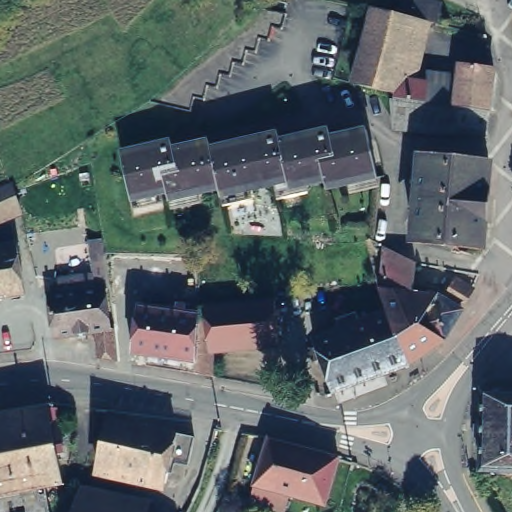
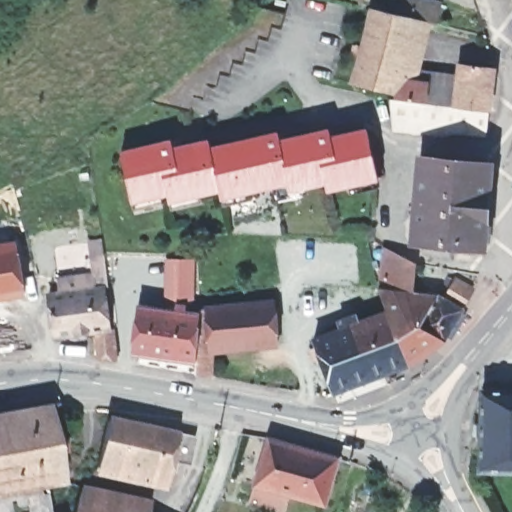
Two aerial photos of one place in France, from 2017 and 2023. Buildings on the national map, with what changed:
unchanged [(286,19),(277,16),(272,30),(262,29),(259,41),(251,41),(246,55),(237,53),(232,67),(225,66),(220,80),(213,77),(207,92),(199,90),(193,106),(155,96),(165,88),(168,86),(232,34),(259,0),(284,0),(290,2),(286,19)]
unchanged [(370,3),(397,10),(399,0),(434,0),(435,1),(431,20),(410,14),(395,74),(390,90),(349,79),(370,3)]
unchanged [(486,104),(390,94),(390,90),(395,74),(426,77),(427,81),(454,84),(457,59),(488,61),(490,71),(486,104)]
unchanged [(485,128),(460,126),(440,131),(437,126),(425,130),(422,125),(407,128),(405,124),(392,126),(388,96),(390,94),(486,104),(485,128)]
unchanged [(319,183),(318,178),(284,185),(282,177),(212,193),(211,184),(163,195),(161,187),(123,194),(113,150),(172,136),(173,144),(201,138),(203,145),(277,128),(280,136),(333,124),(334,131),(363,125),(373,171),(319,183)]
unchanged [(420,151),(485,160),(480,243),(411,237),(420,151)]
unchanged [(0,208),(0,178),(5,176),(10,174),(11,179),(17,201),(0,208)]
unchanged [(13,236),(23,285),(0,290),(0,238),(13,236)]
unchanged [(49,330),(45,288),(54,287),(53,268),(88,265),(86,248),(101,246),(106,280),(99,281),(105,321),(111,321),(114,339),(115,353),(94,349),(90,324),(49,330)]
unchanged [(385,305),(378,288),(379,281),(385,248),(410,262),(414,262),(410,286),(427,289),(411,321),(437,335),(406,358),(385,305)]
unchanged [(440,292),(450,276),(465,283),(463,288),(456,301),(440,292)]
unchanged [(411,321),(427,289),(428,289),(455,303),(437,335),(411,321)]
unchanged [(195,355),(203,309),(205,303),(271,292),(280,329),(215,341),(211,369),(192,366),(195,355)]
unchanged [(111,321),(108,295),(173,304),(174,297),(182,298),(181,305),(203,309),(195,355),(127,346),(128,342),(114,339),(111,321)]
unchanged [(329,388),(316,353),(309,355),(306,345),(311,344),(308,332),(340,321),(338,315),(355,310),(357,315),(385,305),(406,358),(329,388)]
unchanged [(512,468),(480,467),(482,384),(512,386),(512,468)]
unchanged [(55,403),(49,404),(60,465),(44,469),(0,478),(0,402),(38,394),(53,393),(55,403)]
unchanged [(195,421),(188,447),(170,444),(167,465),(97,451),(107,404),(195,421)]
unchanged [(325,489),(284,479),(279,496),(251,488),(269,424),(338,442),(325,489)]
unchanged [(53,512),(0,512),(0,478),(44,469),(53,512)]
unchanged [(147,512),(72,512),(76,487),(148,503),(147,512)]
unchanged [(148,503),(175,508),(174,512),(147,512),(148,503)]

